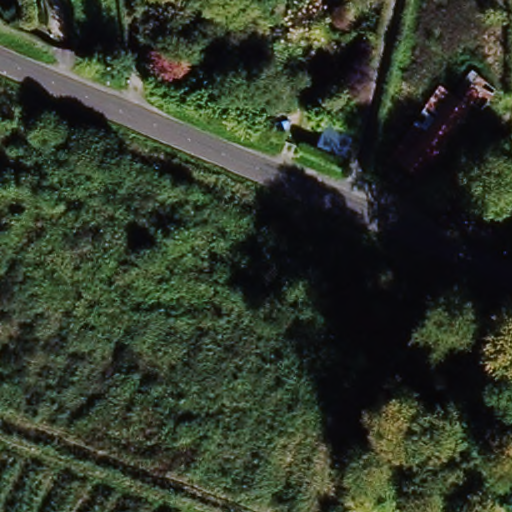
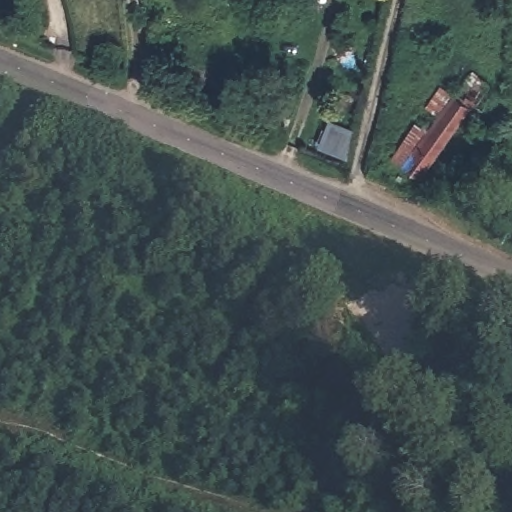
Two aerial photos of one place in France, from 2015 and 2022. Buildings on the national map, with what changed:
unchanged [(411,126),(425,135),(452,96),(468,73),(494,91),(477,115),(469,110),(419,178),(402,166),(403,164),(390,154),(411,126)]
unchanged [(327,129),(352,139),(347,163),(320,151),(327,129)]

